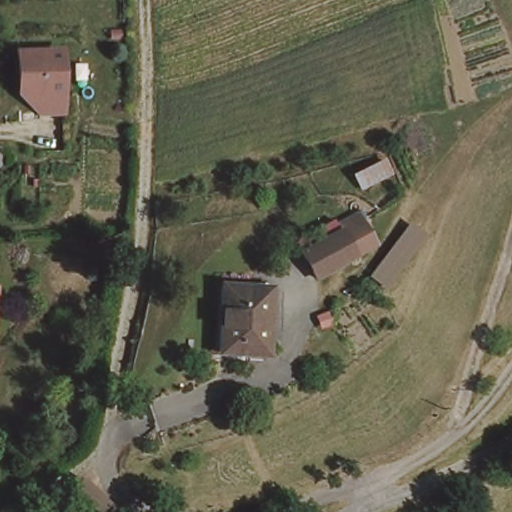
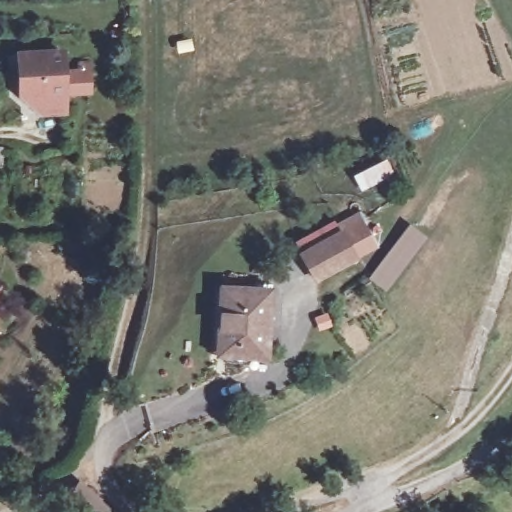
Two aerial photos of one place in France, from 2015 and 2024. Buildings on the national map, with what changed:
unchanged [(17,101),(16,60),(61,58),(63,118),(38,118),(36,101),(17,101)]
unchanged [(391,177),(361,192),(354,177),(382,160),(391,177)]
unchanged [(311,278),(297,248),(318,237),(326,239),(365,220),(376,243),(335,264),(336,266),(311,278)]
unchanged [(428,239),(400,277),(380,294),(366,283),(407,224),(428,239)]
unchanged [(240,363),(210,305),(249,284),(278,343),(240,363)]

